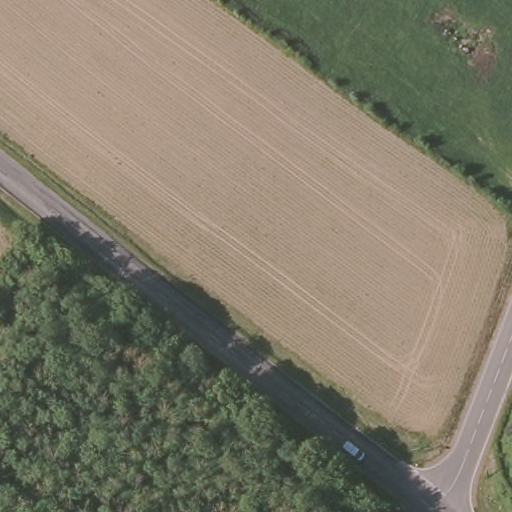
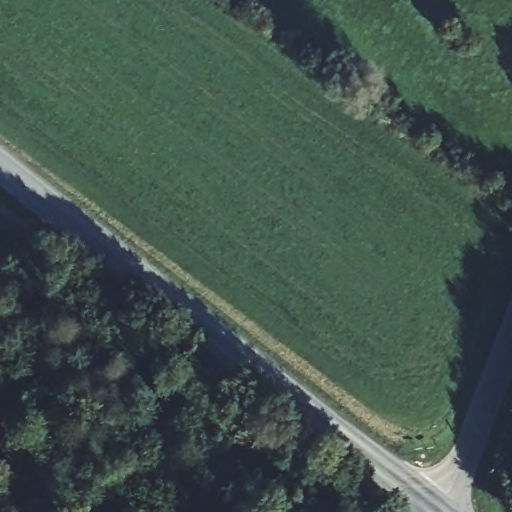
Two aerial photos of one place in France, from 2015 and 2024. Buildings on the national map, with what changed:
[]

